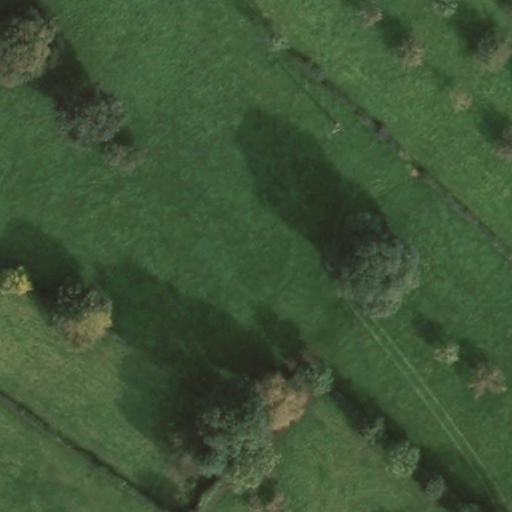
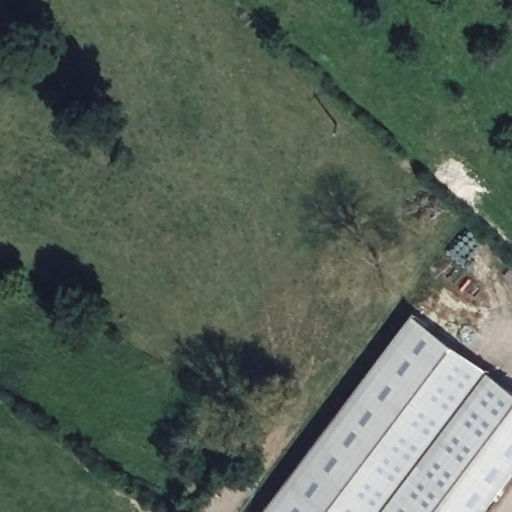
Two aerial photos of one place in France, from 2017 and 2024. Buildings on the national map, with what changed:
new [(465,358),(467,353),(512,387),(512,458),(512,459),(512,468),(479,512),(261,512),(412,311),(461,348),(458,352),(465,358)]

